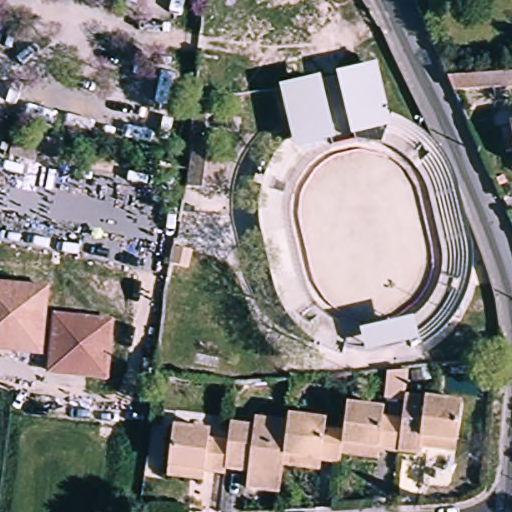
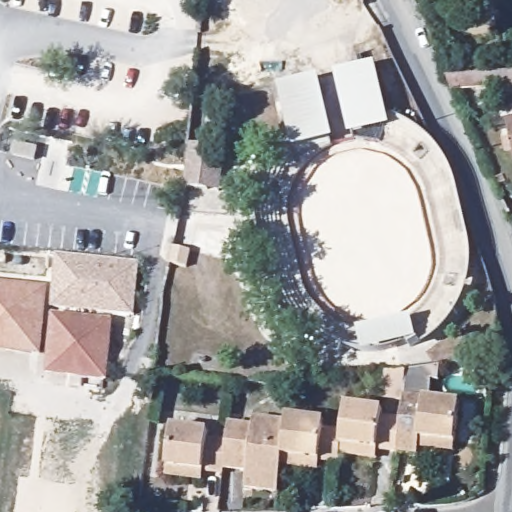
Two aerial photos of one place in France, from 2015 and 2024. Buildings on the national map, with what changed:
unchanged [(335,0),(338,0),(335,1),(335,0)]
unchanged [(262,223),(260,199),(267,169),(291,135),(279,85),(319,73),(335,137),(330,139),(333,144),(319,151),(306,164),(295,180),(290,197),(289,219),(299,264),(308,291),(321,309),(338,323),(360,332),(371,330),(410,320),(423,312),(440,278),(439,244),(430,204),(420,174),(404,155),(381,141),(385,129),(351,137),(333,72),(379,63),(393,114),(431,139),(447,157),(457,178),(471,242),(475,278),(467,307),(455,327),(411,353),(409,348),(390,353),(391,358),(350,357),(315,343),(296,329),(274,288),(262,223)]
unchanged [(512,74),(512,88),(435,93),(429,79),(465,77),(512,74)]
unchanged [(69,143),(61,170),(9,155),(17,129),(69,143)]
unchanged [(512,132),(512,145),(510,133),(512,132)]
unchanged [(211,145),(207,188),(187,186),(192,143),(211,145)]
new [(139,262),(132,317),(52,309),(57,255),(139,262)]
unchanged [(38,349),(0,345),(0,283),(44,287),(38,349)]
unchanged [(102,379),(46,373),(52,314),(107,320),(102,379)]
unchanged [(400,423),(404,398),(464,406),(459,445),(425,441),(422,456),(396,453),(400,423)]
unchanged [(396,453),(339,446),(340,433),(344,404),(382,409),(381,420),(400,423),(396,453)]
unchanged [(278,461),(275,480),(259,479),(258,488),(240,485),(242,467),(223,465),(226,444),(228,426),(249,428),(250,419),(283,424),(278,461)]
unchanged [(283,424),(284,419),(321,423),(320,431),(340,433),(339,446),(335,467),(278,461),(283,424)]
unchanged [(169,431),(207,436),(206,442),(226,444),(223,465),(222,475),(164,468),(169,431)]

